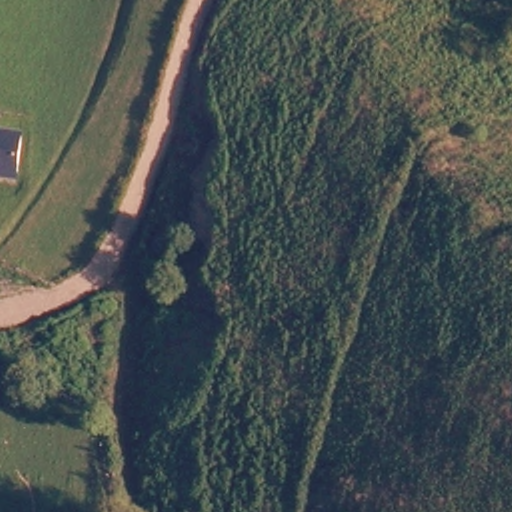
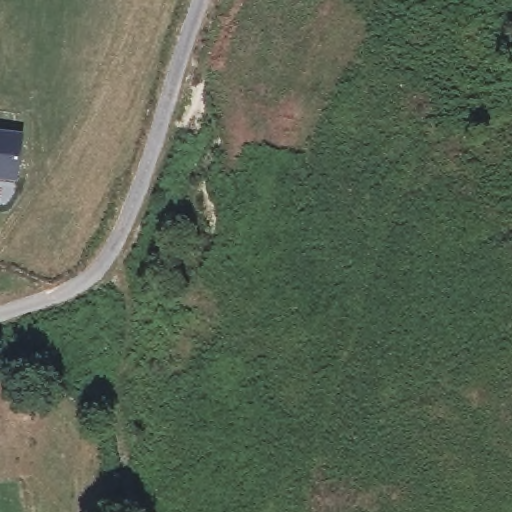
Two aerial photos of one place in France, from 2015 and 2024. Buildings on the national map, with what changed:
unchanged [(15,173),(0,172),(0,125),(21,128),(15,173)]

